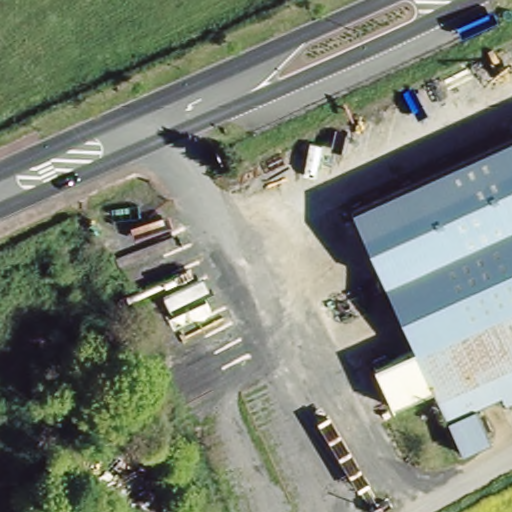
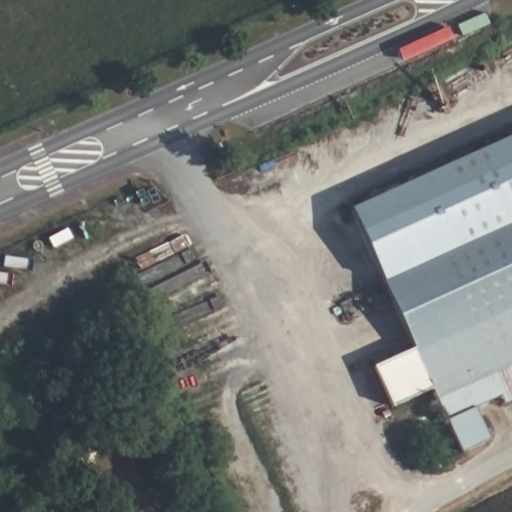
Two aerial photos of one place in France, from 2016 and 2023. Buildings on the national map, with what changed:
unchanged [(490,384),(466,393),(482,431),(454,443),(351,206),(512,141),(512,375),(490,384)]
unchanged [(412,348),(429,386),(392,404),(374,365),(412,348)]

